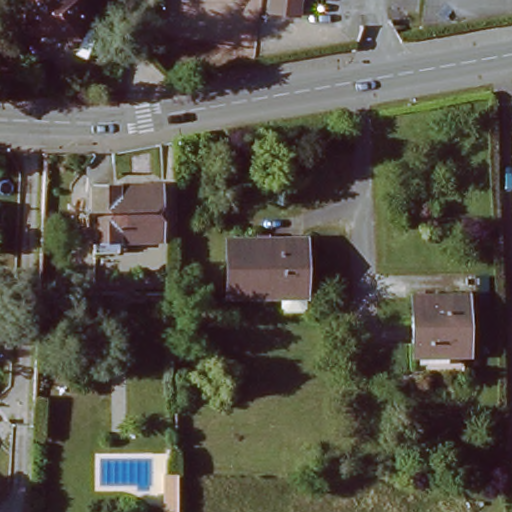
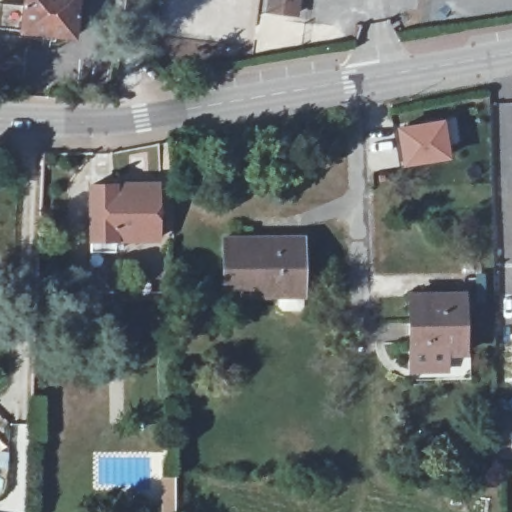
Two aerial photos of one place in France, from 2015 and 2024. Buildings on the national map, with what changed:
unchanged [(0,5),(21,7),(21,0),(76,0),(71,36),(0,29),(0,5)]
unchanged [(269,0),(303,0),(302,13),(268,10),(269,0)]
new [(445,116),(450,160),(402,168),(394,125),(445,116)]
unchanged [(153,178),(153,237),(119,237),(120,244),(111,243),(110,249),(85,249),(87,178),(153,178)]
unchanged [(223,284),(223,239),(300,239),(301,294),(277,294),(223,292),(223,284)]
unchanged [(463,352),(406,354),(404,294),(461,294),(463,352)]
unchanged [(163,512),(164,471),(176,471),(176,512),(163,512)]

